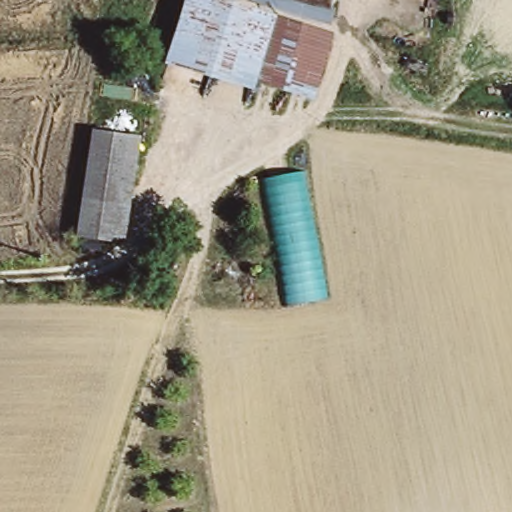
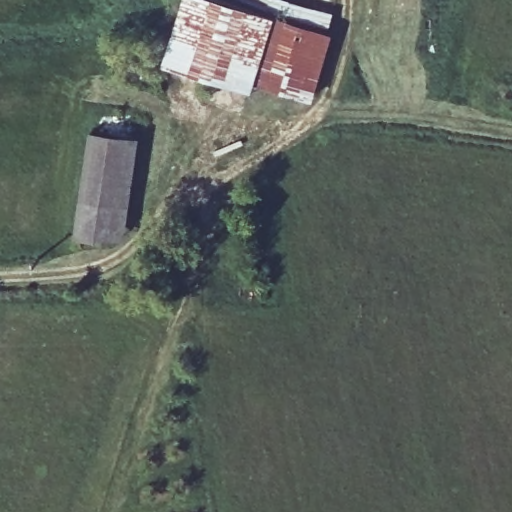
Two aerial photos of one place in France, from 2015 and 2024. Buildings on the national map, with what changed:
unchanged [(334,32),(314,99),(255,84),(252,91),(167,65),(184,0),(230,0),(334,32)]
unchanged [(145,140),(126,210),(100,235),(95,234),(75,230),(103,130),(113,132),(145,140)]
demolished [(286,308),(261,182),(303,174),(327,300),(286,308)]

